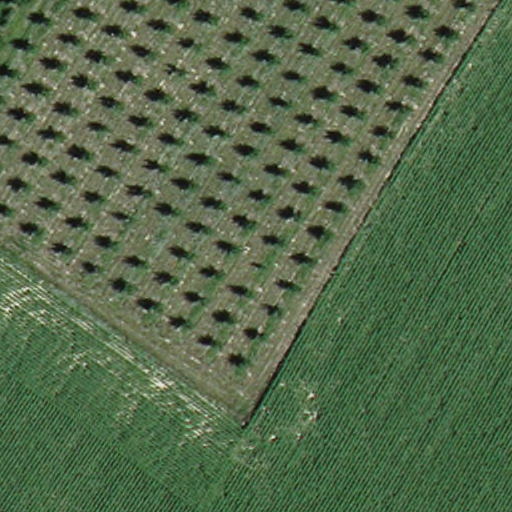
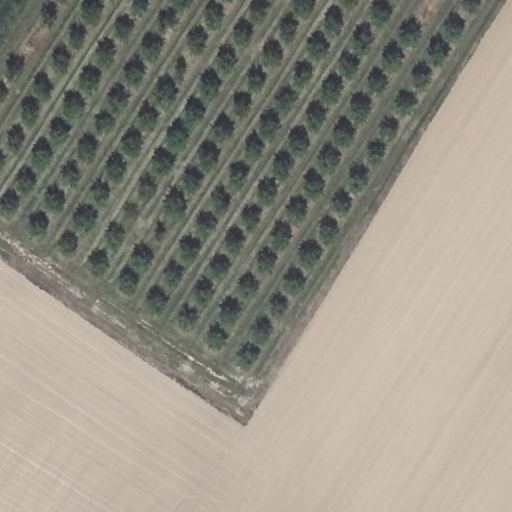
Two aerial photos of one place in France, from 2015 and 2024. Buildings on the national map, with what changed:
[]

